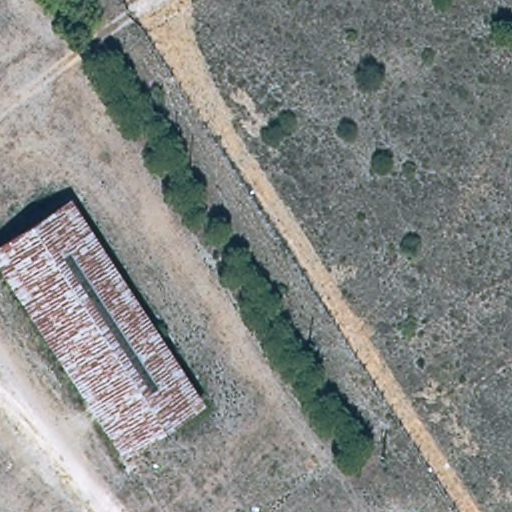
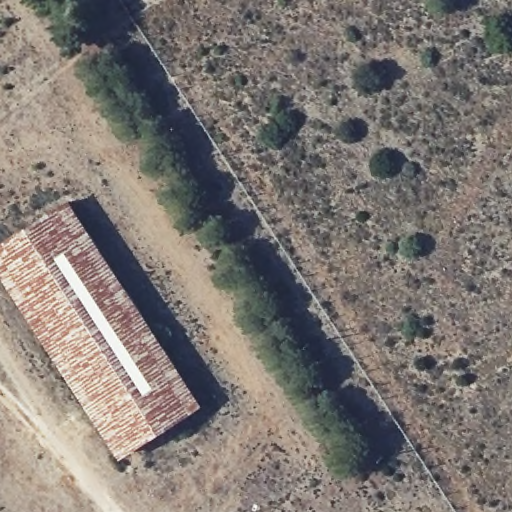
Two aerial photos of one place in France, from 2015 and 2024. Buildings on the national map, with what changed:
unchanged [(68,193),(203,403),(118,454),(0,271),(0,235),(68,193)]

